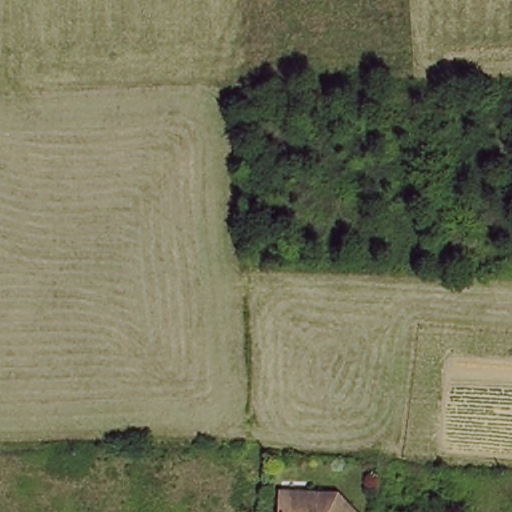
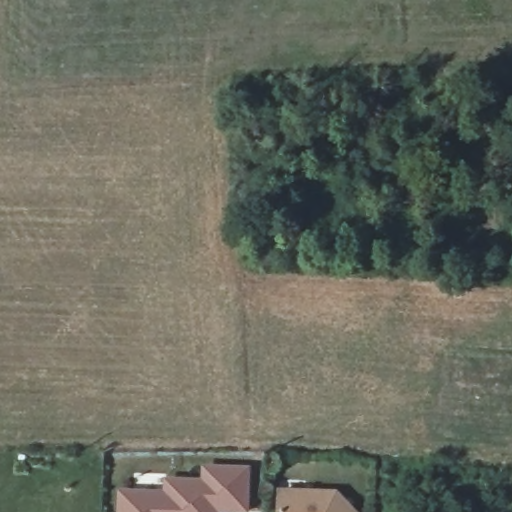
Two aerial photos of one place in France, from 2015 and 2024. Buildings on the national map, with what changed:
new [(161,493),(164,478),(201,480),(201,466),(249,467),(249,512),(117,512),(118,491),(161,493)]
unchanged [(286,485),(336,487),(360,512),(284,512),(286,485)]

